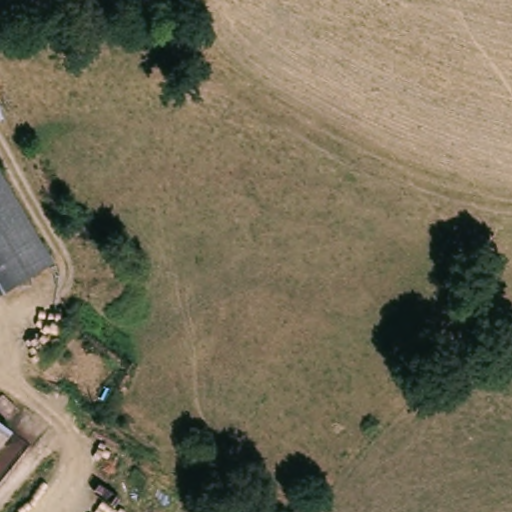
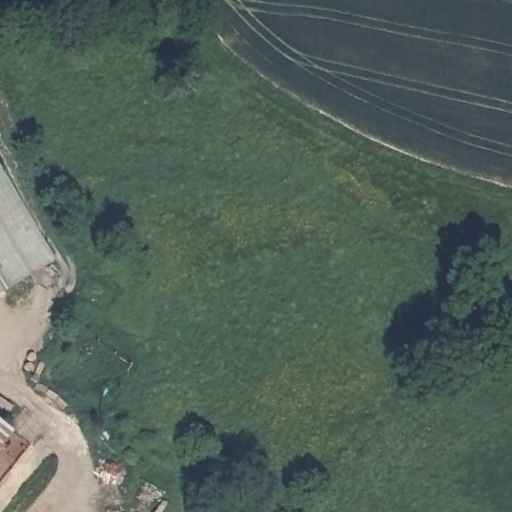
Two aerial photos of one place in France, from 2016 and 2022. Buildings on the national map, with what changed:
unchanged [(54,275),(0,303),(0,174),(54,275)]
unchanged [(0,448),(0,434),(2,435),(7,438),(0,448)]

